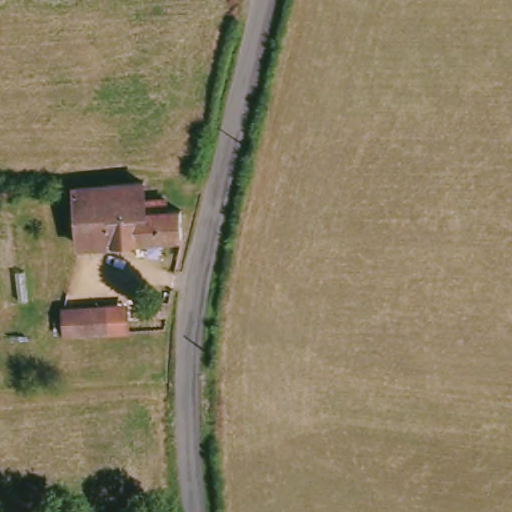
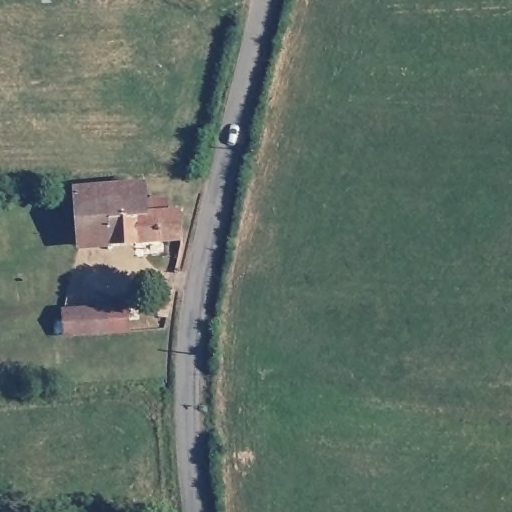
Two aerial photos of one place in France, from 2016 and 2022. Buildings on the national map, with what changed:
unchanged [(149,242),(81,244),(81,187),(149,185),(149,200),(149,239),(149,242)]
unchanged [(149,239),(149,200),(173,200),(173,210),(187,210),(186,239),(149,239)]
unchanged [(72,333),(71,310),(112,308),(113,332),(72,333)]

